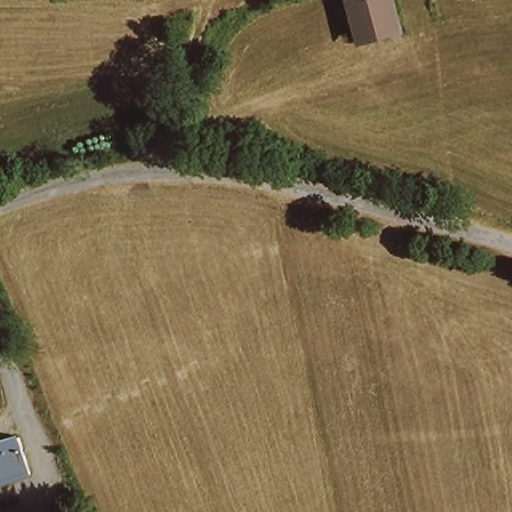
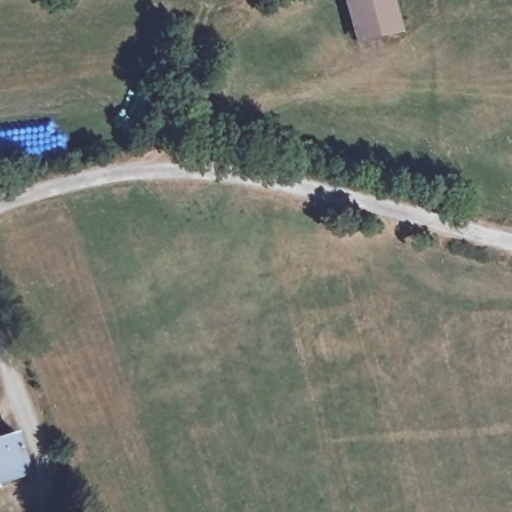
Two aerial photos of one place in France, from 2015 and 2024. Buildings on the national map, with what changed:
unchanged [(355,34),(355,0),(392,0),(392,34),(355,34)]
unchanged [(0,473),(0,456),(5,472),(0,473)]

